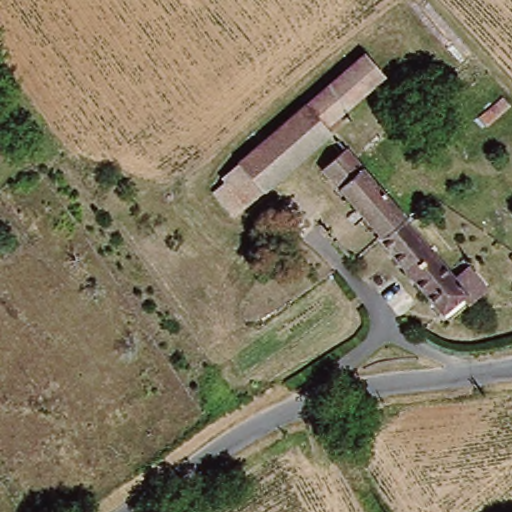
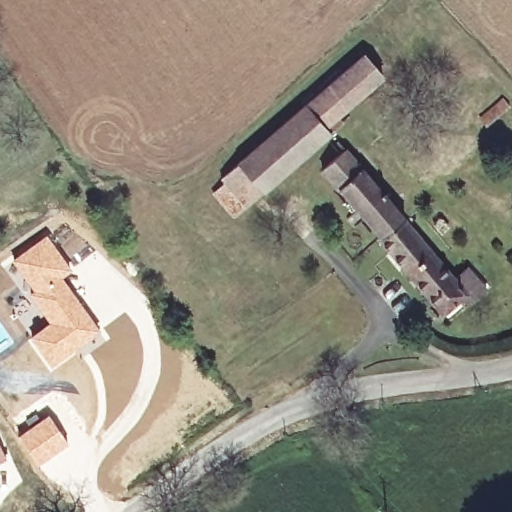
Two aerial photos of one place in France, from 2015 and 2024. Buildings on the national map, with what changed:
unchanged [(318,101),(368,62),(392,93),(341,132),(318,101)]
unchanged [(215,181),(318,101),(341,132),(305,161),(236,211),(215,181)]
unchanged [(381,240),(325,169),(350,147),(407,221),(381,240)]
unchanged [(485,297),(467,311),(461,303),(442,318),(381,240),(407,221),(455,283),(467,273),(485,297)]
new [(46,234),(72,270),(63,277),(100,330),(50,368),(27,337),(48,321),(11,260),(46,234)]
new [(48,413),(67,442),(37,463),(17,436),(48,413)]
new [(0,461),(0,446),(5,458),(0,461)]

